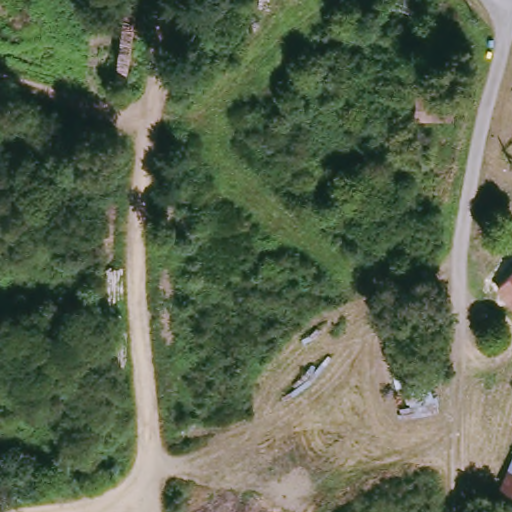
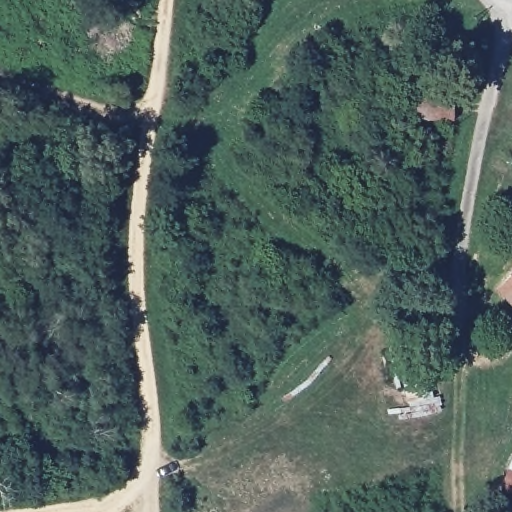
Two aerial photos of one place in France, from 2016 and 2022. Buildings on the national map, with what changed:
unchanged [(512,278),(512,298),(503,288),(512,278)]
unchanged [(512,467),(512,491),(504,488),(512,467)]

